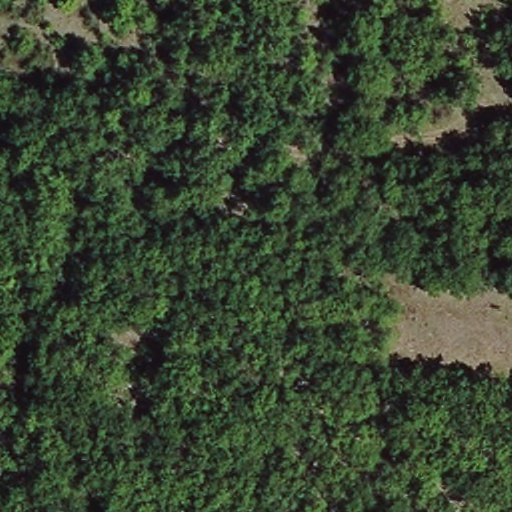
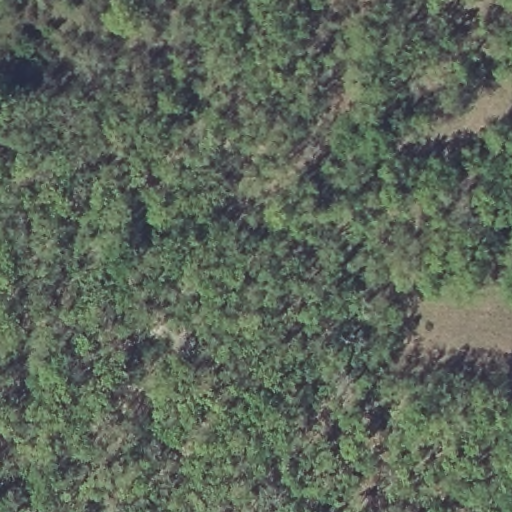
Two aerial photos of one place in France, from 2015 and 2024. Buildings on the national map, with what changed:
[]

